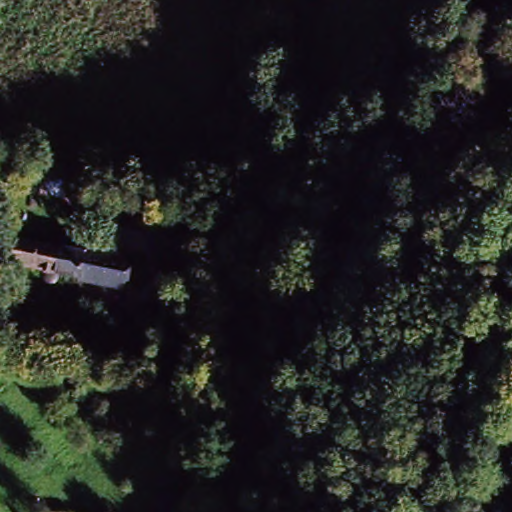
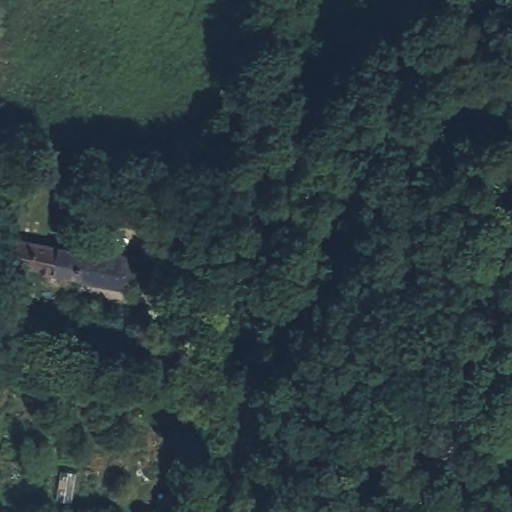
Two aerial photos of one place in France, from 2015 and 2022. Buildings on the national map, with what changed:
unchanged [(139,291),(26,270),(30,252),(42,256),(45,245),(88,252),(91,232),(132,240),(134,261),(145,263),(139,291)]

